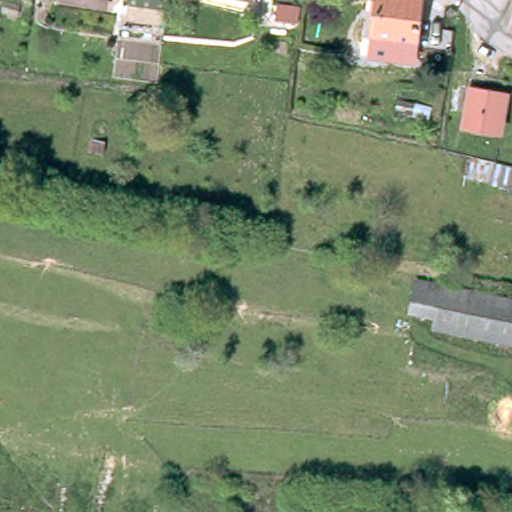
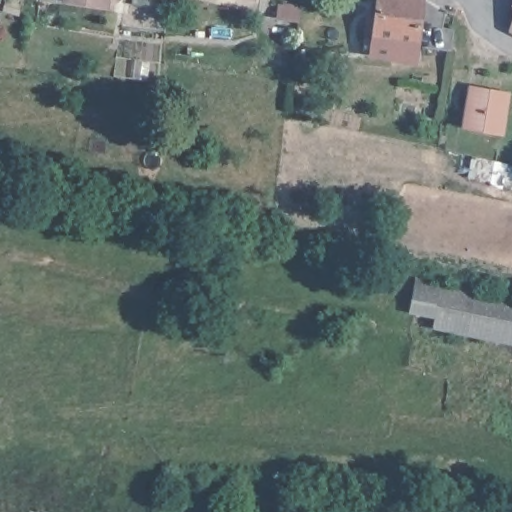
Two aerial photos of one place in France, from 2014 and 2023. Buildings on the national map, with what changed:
unchanged [(375,35),(379,0),(424,0),(420,40),(403,38),(402,49),(379,47),(380,36),(375,35)]
unchanged [(512,23),(512,26),(511,26),(512,23)]
unchanged [(505,92),(499,123),(470,118),(476,87),(505,92)]
unchanged [(436,330),(439,317),(418,314),(415,313),(421,284),(427,285),(512,301),(512,345),(436,330)]

